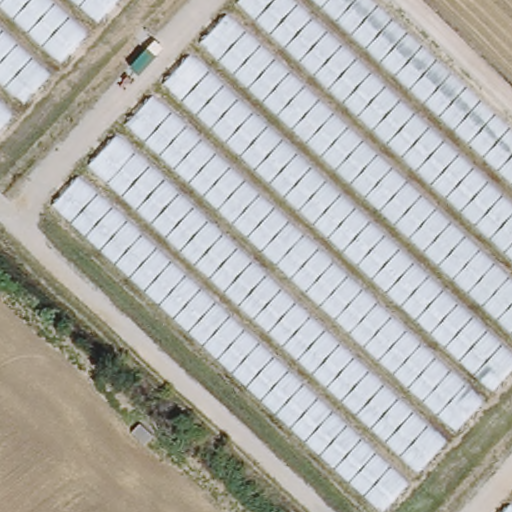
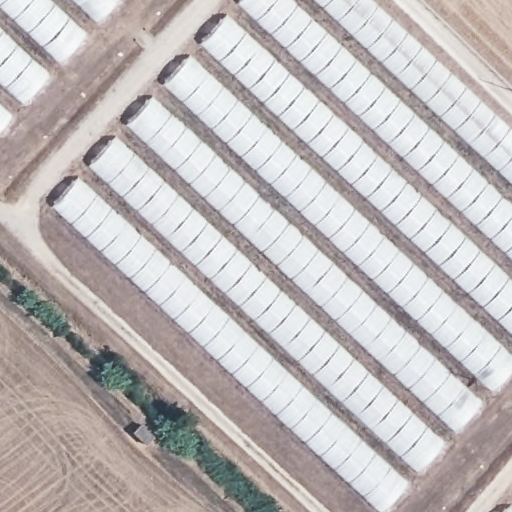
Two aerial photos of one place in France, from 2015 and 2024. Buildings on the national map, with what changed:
unchanged [(0,0),(121,0),(0,133),(0,0)]
unchanged [(383,512),(52,206),(240,0),(376,0),(512,127),(512,373),(385,512),(383,512)]
unchanged [(157,435),(145,449),(123,432),(137,422),(157,435)]
unchanged [(505,512),(512,504),(512,512),(505,512)]

